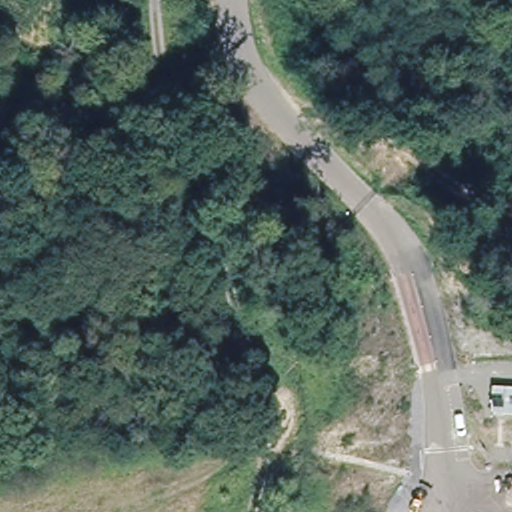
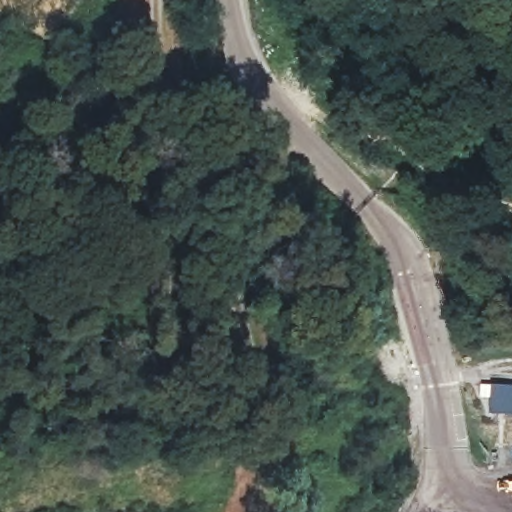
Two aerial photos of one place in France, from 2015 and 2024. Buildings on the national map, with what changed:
unchanged [(512,415),(493,415),(494,387),(512,388),(512,415)]

